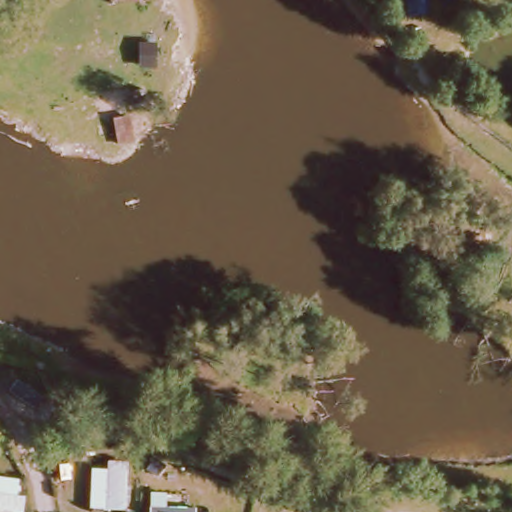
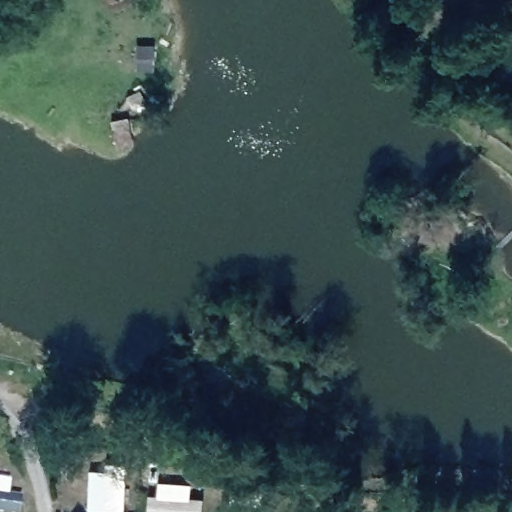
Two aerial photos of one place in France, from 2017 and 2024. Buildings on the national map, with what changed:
unchanged [(144,133),(128,136),(124,114),(140,112),(144,133)]

